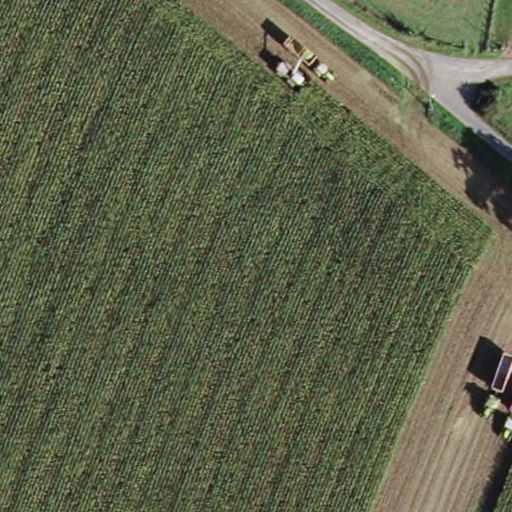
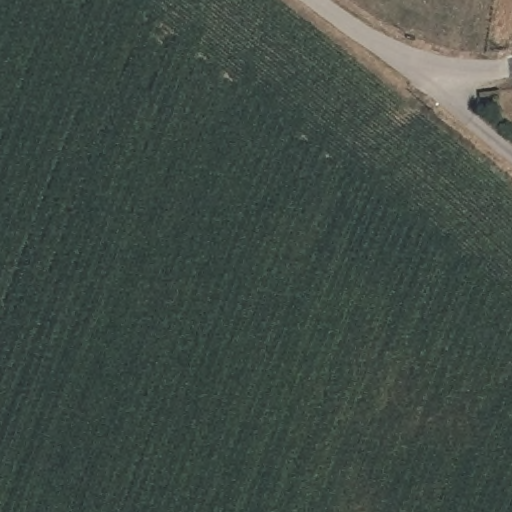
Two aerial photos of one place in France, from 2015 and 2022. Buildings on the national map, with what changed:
[]

